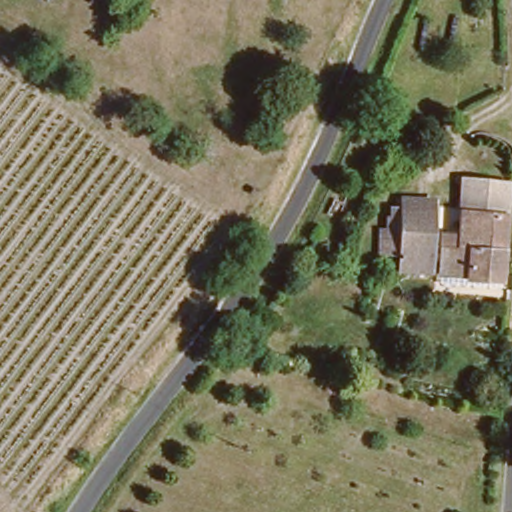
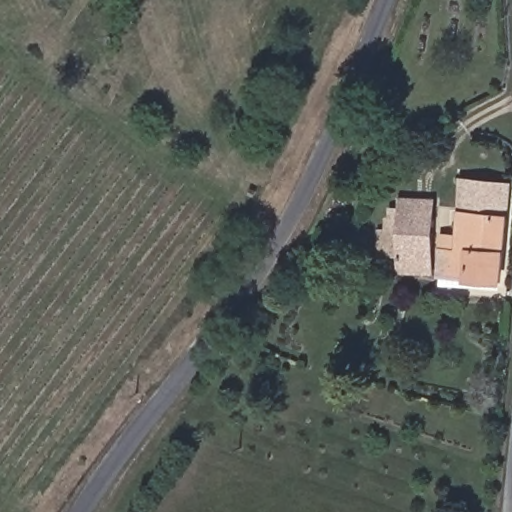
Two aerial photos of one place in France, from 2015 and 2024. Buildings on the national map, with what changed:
unchanged [(477,279),(478,276),(459,275),(461,249),(452,249),(452,234),(471,234),(472,184),(512,184),(512,216),(511,280),(477,279)]
unchanged [(399,197),(431,197),(431,216),(429,286),(396,284),(399,217),(399,197)]

